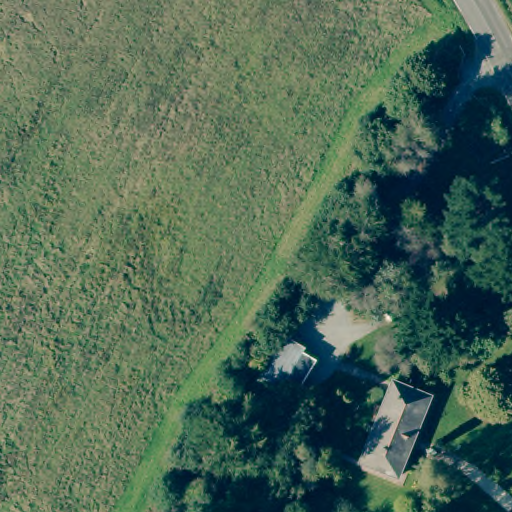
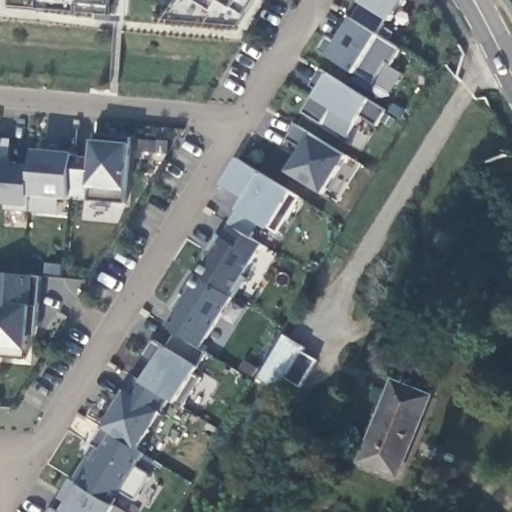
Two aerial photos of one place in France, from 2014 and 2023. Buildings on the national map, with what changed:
new [(107,0),(107,1),(106,7),(80,4),(79,13),(40,9),(41,0),(107,0)]
new [(257,0),(257,1),(246,15),(239,27),(165,19),(178,0),(257,0)]
new [(338,44),(353,20),(363,4),(365,0),(406,0),(392,22),(387,18),(378,33),(381,35),(401,49),(391,66),(387,62),(373,84),(357,74),(330,57),(319,50),(327,37),(338,44)]
new [(322,70),(330,75),(371,100),(387,110),(377,126),(362,116),(356,124),(347,137),(326,125),(307,112),(315,99),(319,92),(313,86),(322,70)]
new [(312,135),(347,157),(324,194),(289,172),(304,148),(288,139),(296,125),(312,135)]
new [(10,164),(33,165),(34,149),(73,152),(91,154),(92,141),(130,144),(126,191),(125,203),(89,201),(90,196),(71,194),(70,200),(31,197),(30,206),(0,203),(0,139),(12,141),(10,164)]
new [(69,505),(59,498),(71,479),(74,481),(89,455),(94,458),(100,448),(93,443),(104,427),(111,417),(107,412),(122,389),(128,392),(135,379),(144,381),(154,366),(143,357),(154,341),(165,347),(176,331),(168,325),(229,225),(240,211),(245,203),(221,187),(239,159),(263,173),(294,192),(302,197),(279,232),(271,227),(269,230),(261,225),(253,236),(263,246),(244,277),(248,280),(202,349),(207,352),(199,366),(194,375),(199,378),(184,407),(177,402),(172,400),(163,413),(140,449),(145,453),(137,466),(151,475),(135,501),(122,492),(114,505),(116,507),(127,512),(65,512),(69,505)]
new [(41,278),(36,338),(29,338),(28,351),(26,358),(2,357),(3,349),(0,349),(0,273),(34,277),(41,278)]
unchanged [(304,347),(280,389),(259,377),(283,336),(304,347)]
unchanged [(318,361),(301,387),(287,378),(302,351),(318,361)]
unchanged [(396,475),(359,462),(387,383),(424,396),(396,475)]
new [(53,509),(58,512),(51,512),(53,509)]

